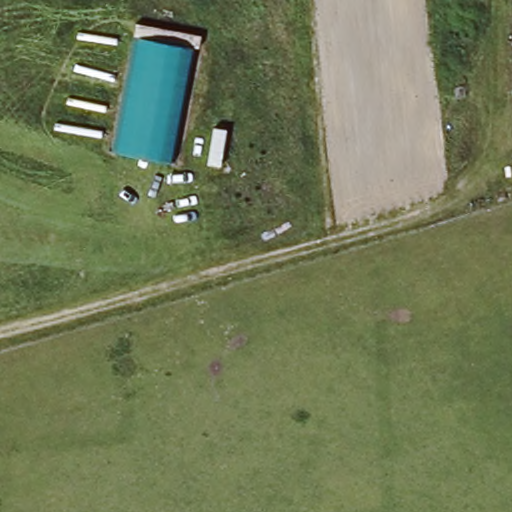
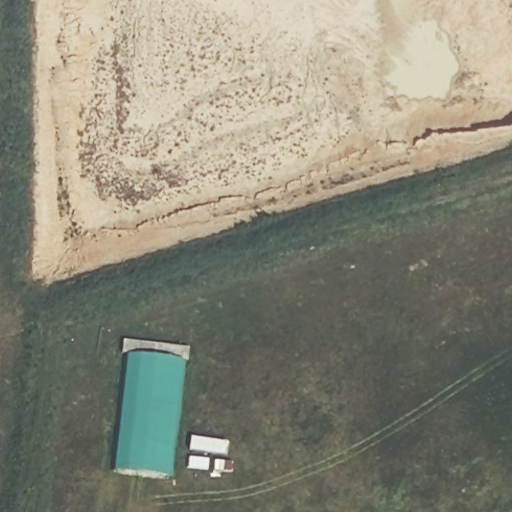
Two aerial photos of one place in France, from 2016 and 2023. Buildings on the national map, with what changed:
demolished [(139,39),(195,47),(173,162),(117,147),(139,39)]
new [(124,355),(187,362),(171,478),(110,470),(124,355)]

